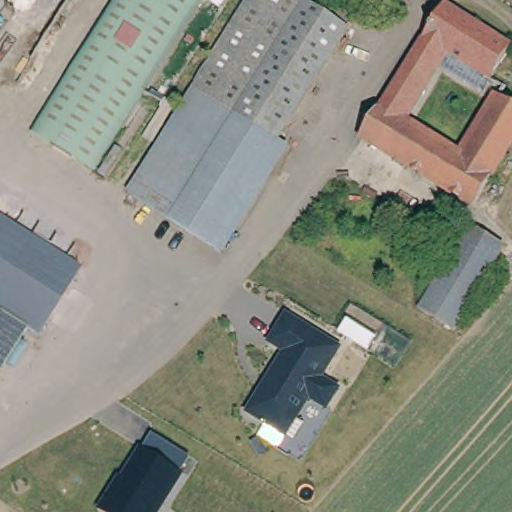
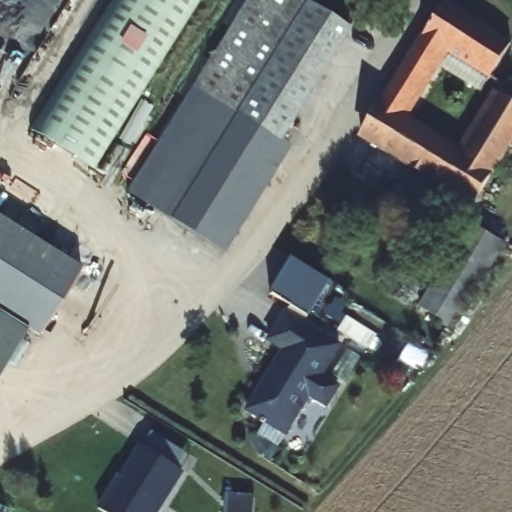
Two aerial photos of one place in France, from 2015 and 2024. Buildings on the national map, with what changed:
unchanged [(92,169),(28,127),(108,0),(199,0),(92,169)]
unchanged [(246,0),(333,0),(354,14),(277,137),(193,84),(246,0)]
unchanged [(508,144),(471,203),(360,135),(443,0),(511,42),(480,90),(442,66),(435,61),(399,119),(458,157),(497,93),(512,102),(512,146),(508,144)]
unchanged [(126,191),(193,84),(277,137),(288,145),(222,251),(126,191)]
unchanged [(37,334),(25,327),(0,368),(0,216),(80,267),(37,334)]
unchanged [(419,306),(455,246),(465,230),(469,222),(504,242),(499,251),(490,266),(453,326),(419,306)]
new [(270,292),(292,258),(330,282),(309,317),(270,292)]
unchanged [(277,351),(265,343),(285,312),(342,345),(325,376),(340,386),(327,408),(309,398),(287,436),(242,410),(277,351)]
unchanged [(185,466),(155,512),(110,512),(99,506),(140,441),(185,466)]

